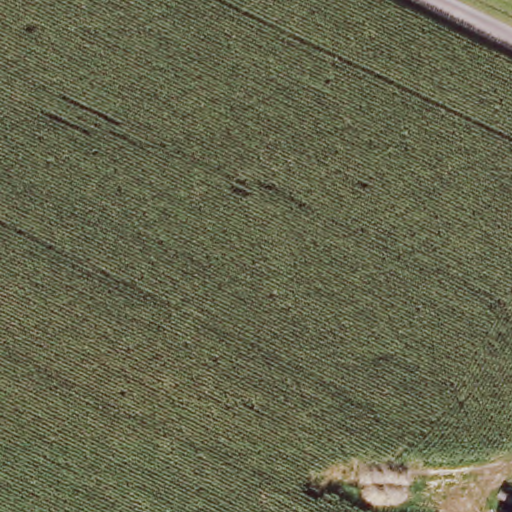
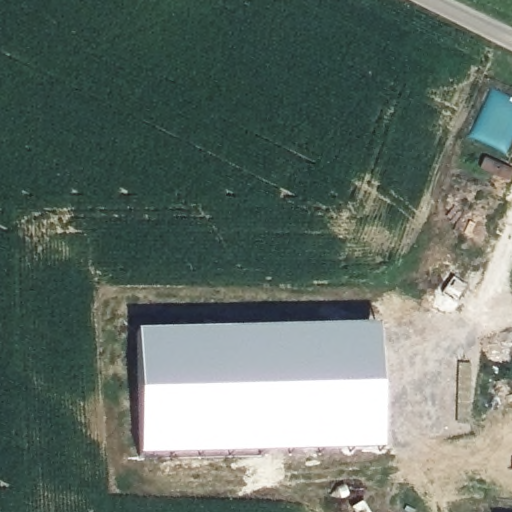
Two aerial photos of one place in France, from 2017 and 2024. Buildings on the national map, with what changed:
new [(382,449),(141,456),(137,330),(377,325),(382,449)]

